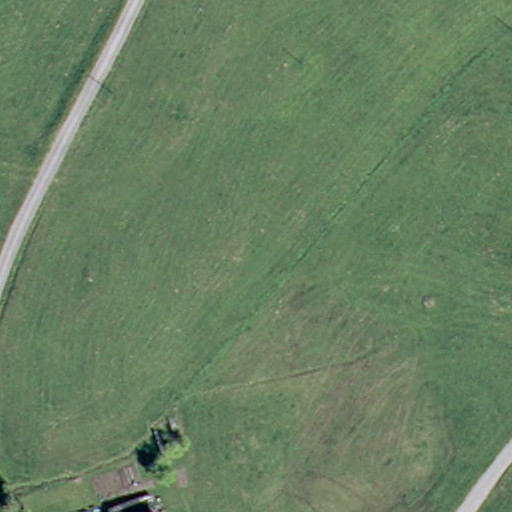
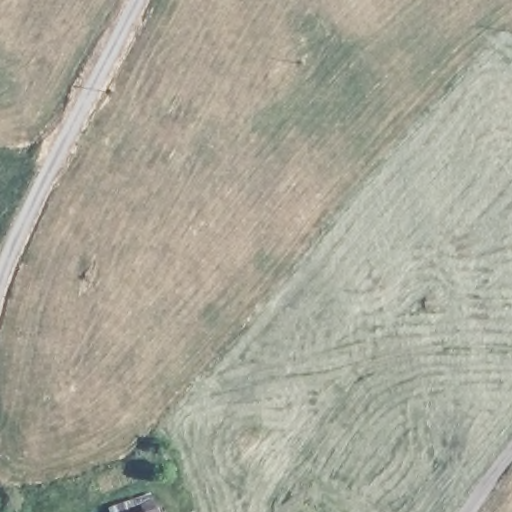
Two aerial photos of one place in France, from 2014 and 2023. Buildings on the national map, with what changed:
unchanged [(149,511),(149,512),(146,512),(149,511)]

